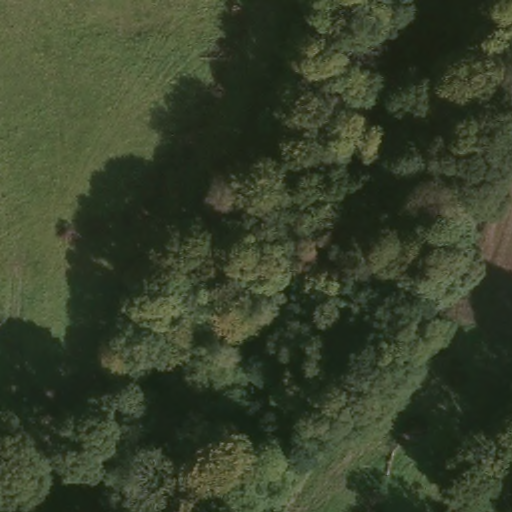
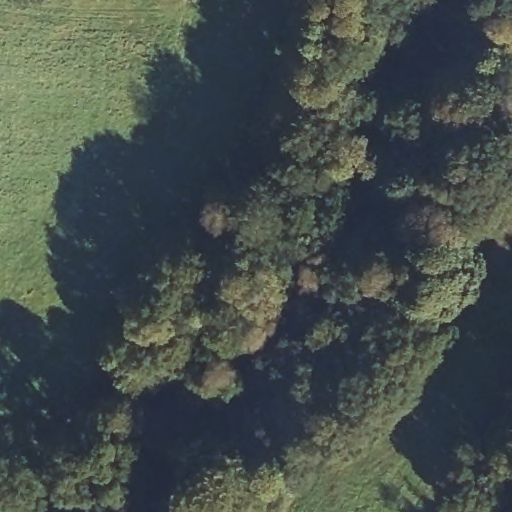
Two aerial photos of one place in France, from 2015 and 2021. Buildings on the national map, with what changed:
[]

